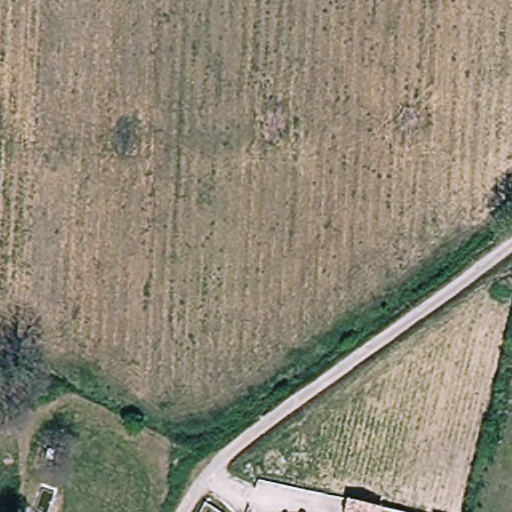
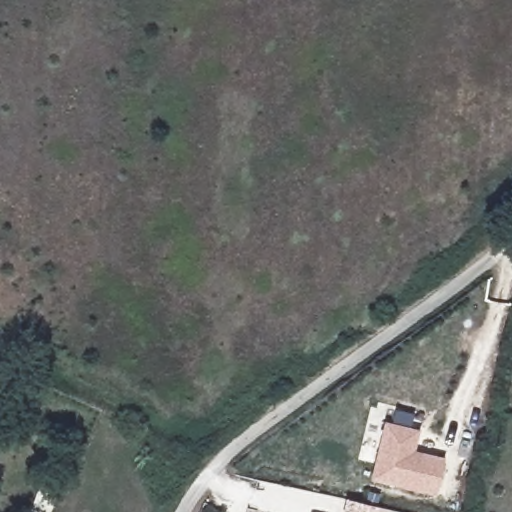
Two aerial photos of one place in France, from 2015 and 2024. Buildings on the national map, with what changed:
new [(422,430),(417,451),(447,458),(437,497),(371,481),(386,422),(422,430)]
unchanged [(384,508),(383,512),(347,512),(350,500),(384,508)]

